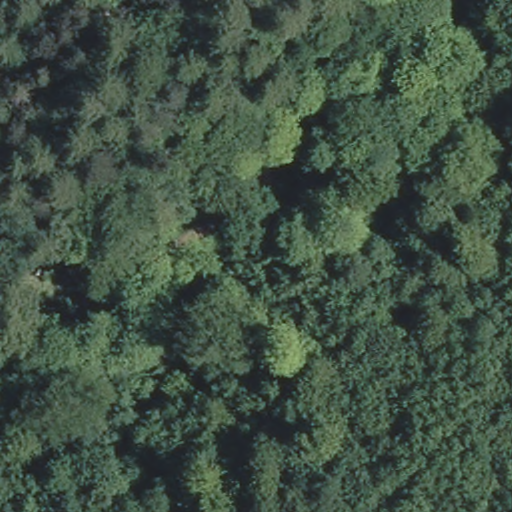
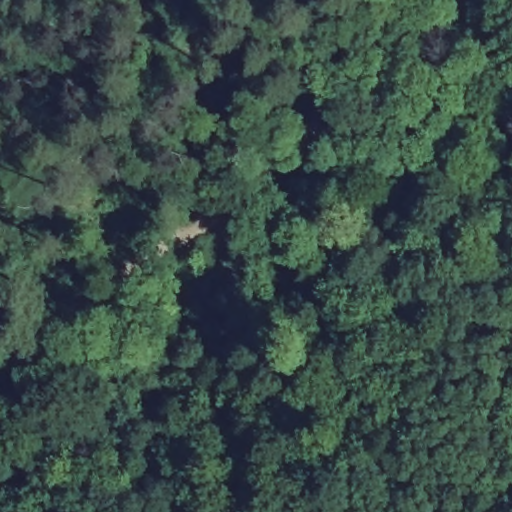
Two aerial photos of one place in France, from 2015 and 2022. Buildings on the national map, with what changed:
unchanged [(273,254),(290,265),(255,316),(226,296),(261,245),(273,254)]

